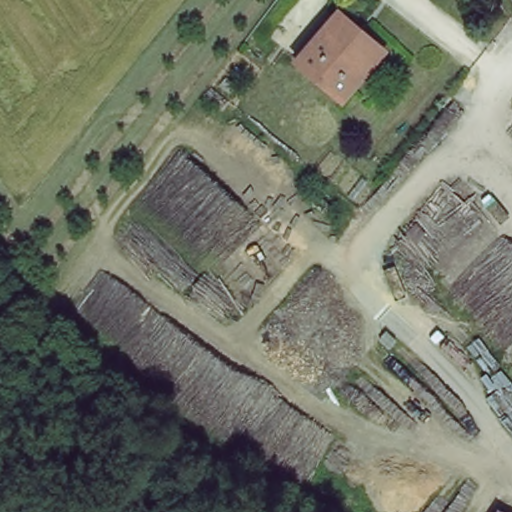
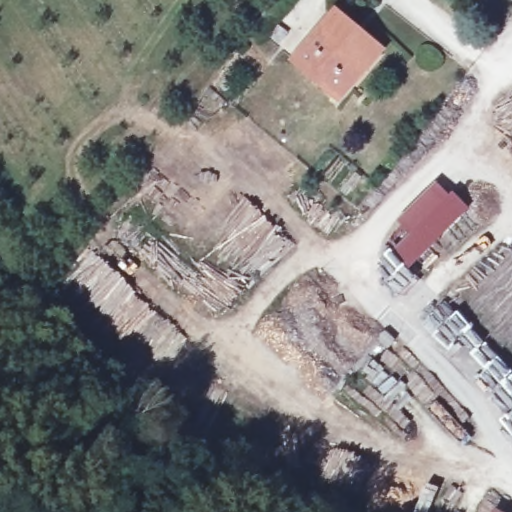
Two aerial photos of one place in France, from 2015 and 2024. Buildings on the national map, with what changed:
unchanged [(348,80),(352,85),(343,100),(298,63),(334,15),(372,45),(348,80)]
new [(464,209),(411,266),(394,250),(411,235),(398,222),(436,184),(464,209)]

